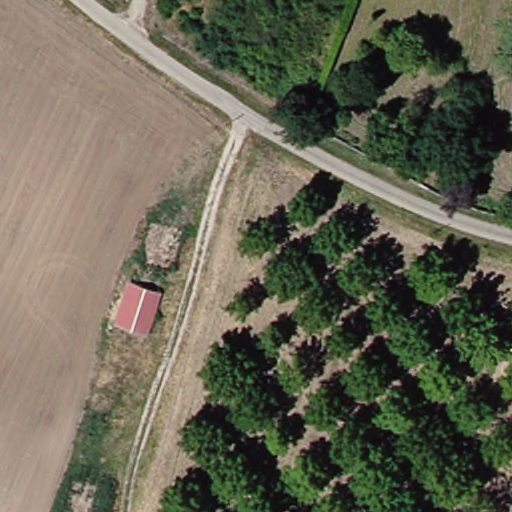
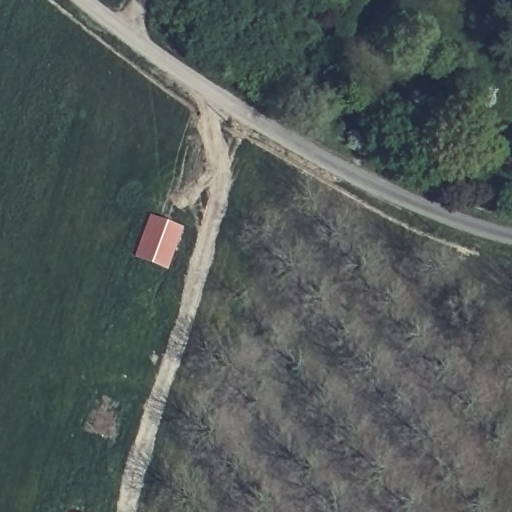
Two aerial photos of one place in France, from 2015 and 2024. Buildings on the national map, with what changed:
new [(166,270),(135,258),(150,215),(182,227),(166,270)]
demolished [(167,288),(160,333),(124,326),(131,282),(167,288)]

